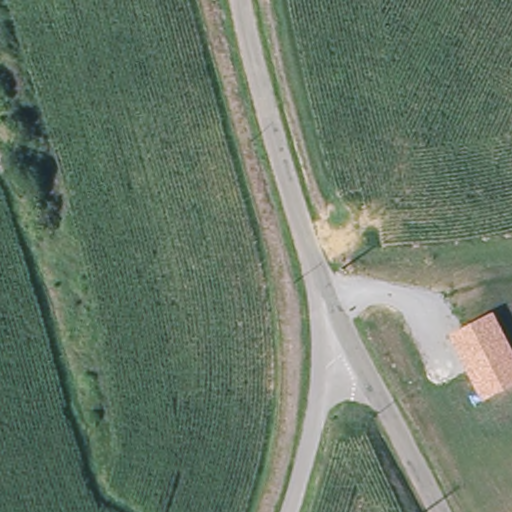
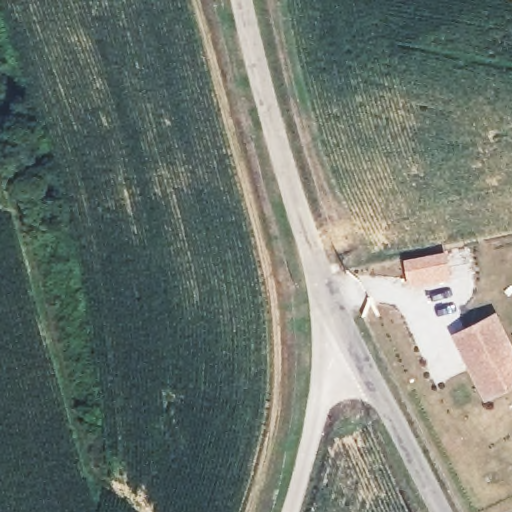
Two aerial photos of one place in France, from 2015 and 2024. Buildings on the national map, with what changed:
new [(445,250),(451,277),(406,285),(402,257),(445,250)]
unchanged [(488,396),(481,382),(456,334),(495,313),(512,347),(512,383),(488,396)]

